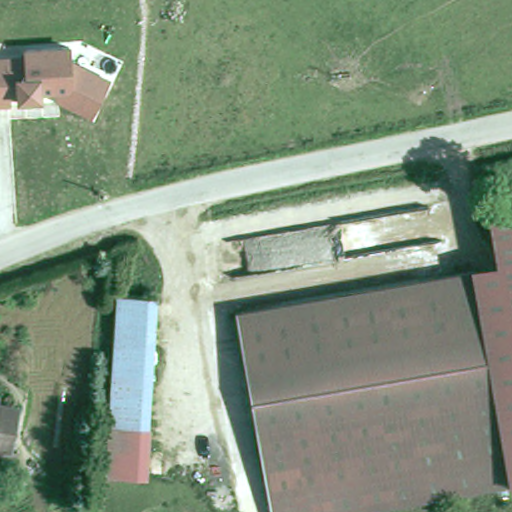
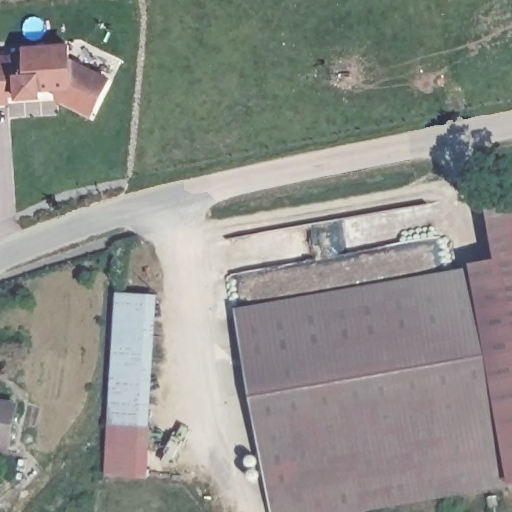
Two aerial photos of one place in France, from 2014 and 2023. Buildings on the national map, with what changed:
unchanged [(22,43),(71,40),(72,55),(112,74),(92,115),(57,97),(56,85),(42,84),(44,99),(16,100),(9,103),(0,104),(0,50),(22,48),(22,43)]
unchanged [(475,270),(499,266),(490,208),(512,204),(512,487),(475,270)]
unchanged [(273,512),(239,312),(475,270),(512,487),(370,512),(273,512)]
unchanged [(109,414),(116,295),(160,297),(150,451),(107,450),(109,414)]
unchanged [(4,407),(26,412),(19,450),(17,458),(0,455),(0,400),(5,400),(4,407)]
unchanged [(149,480),(105,479),(107,450),(150,451),(149,480)]

